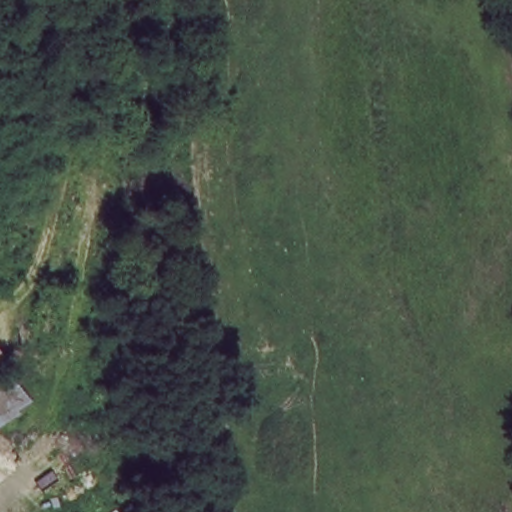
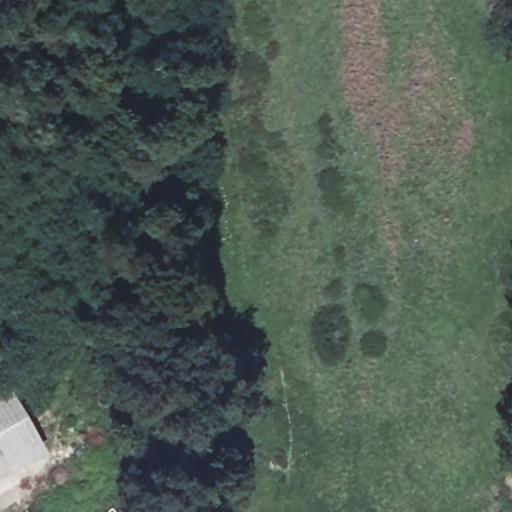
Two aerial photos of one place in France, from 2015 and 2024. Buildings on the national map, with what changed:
demolished [(8,388),(0,393),(0,374),(8,388)]
new [(4,379),(41,449),(0,473),(0,381),(4,379)]

